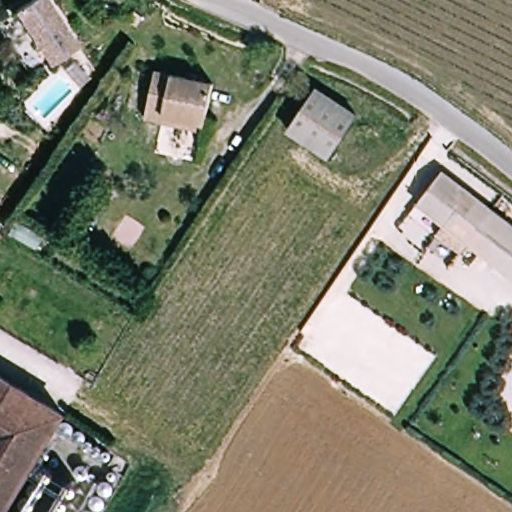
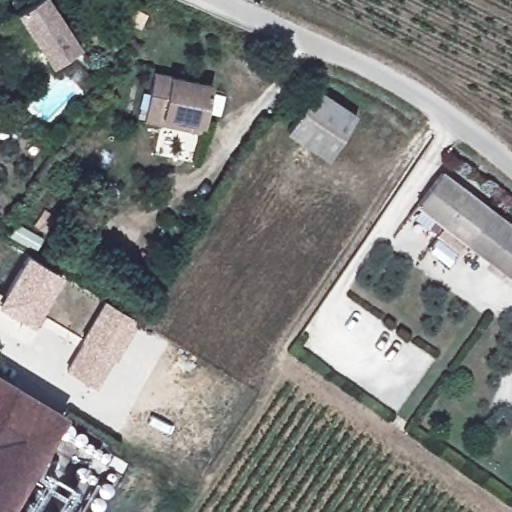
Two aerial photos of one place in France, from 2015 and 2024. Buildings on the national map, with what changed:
unchanged [(49,0),(80,44),(52,62),(16,10),(31,0),(49,0)]
unchanged [(211,87),(200,131),(142,120),(153,73),(211,87)]
unchanged [(360,120),(333,161),(291,134),(318,92),(360,120)]
unchanged [(441,170),(467,189),(442,220),(417,201),(441,170)]
unchanged [(442,220),(467,189),(512,223),(512,274),(442,220)]
unchanged [(0,245),(0,240),(2,241),(0,245)]
new [(0,307),(0,302),(27,255),(65,277),(33,326),(0,307)]
new [(105,300),(139,322),(116,360),(98,390),(67,370),(82,340),(105,300)]
unchanged [(67,406),(11,507),(0,502),(0,368),(67,406)]
unchanged [(112,454),(108,461),(95,455),(58,432),(68,420),(112,454)]
unchanged [(42,461),(47,451),(61,460),(56,470),(79,485),(63,512),(9,512),(42,461)]
unchanged [(104,478),(109,470),(119,475),(113,485),(98,512),(85,512),(100,488),(74,474),(82,463),(104,478)]

